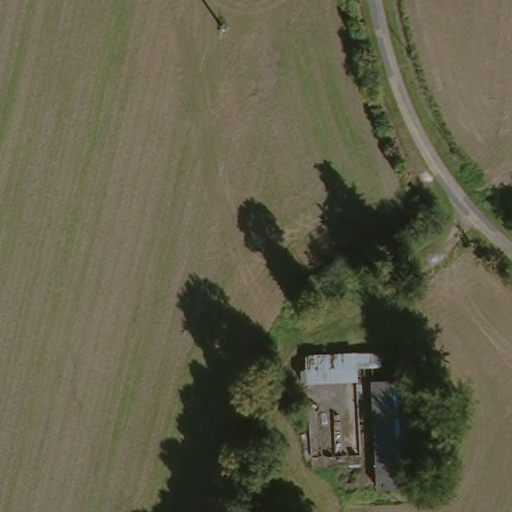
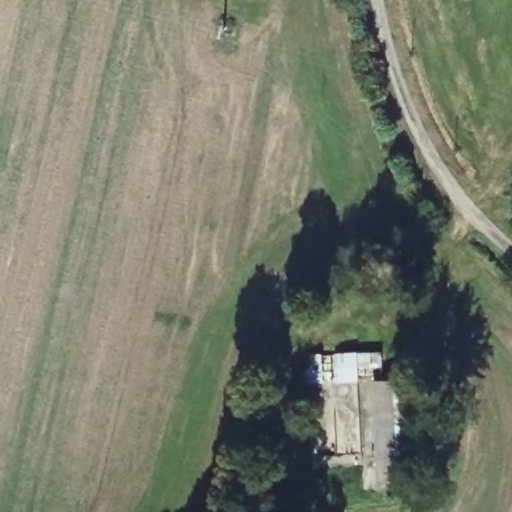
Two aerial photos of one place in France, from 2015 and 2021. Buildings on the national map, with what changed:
unchanged [(384,351),(385,364),(362,364),(363,377),(314,379),(312,354),(384,351)]
unchanged [(419,384),(423,490),(378,491),(374,384),(419,384)]

